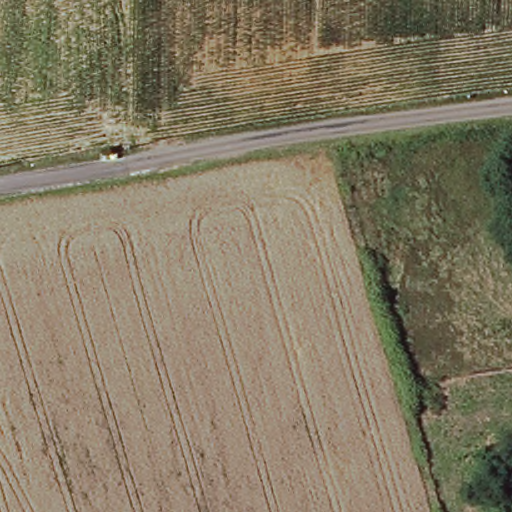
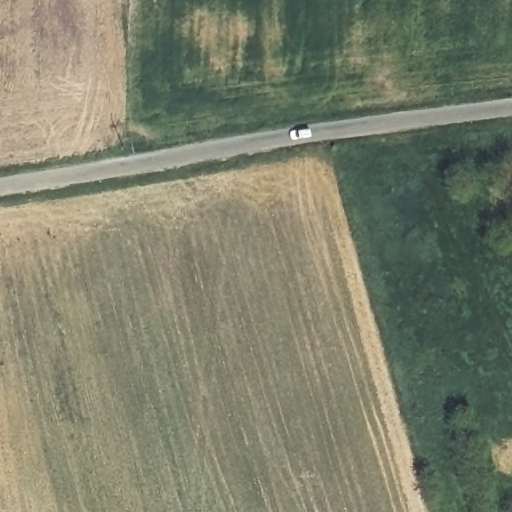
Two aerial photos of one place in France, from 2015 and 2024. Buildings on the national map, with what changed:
[]

